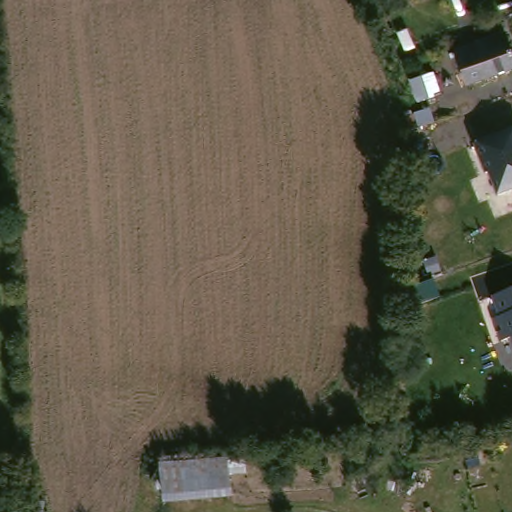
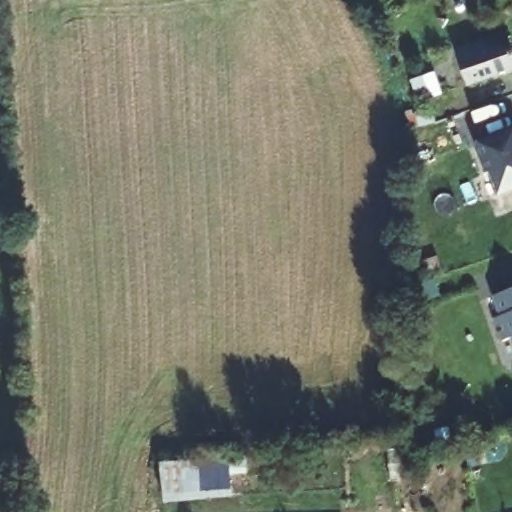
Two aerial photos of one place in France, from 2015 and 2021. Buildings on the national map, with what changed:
unchanged [(467,85),(456,46),(473,41),(505,33),(510,53),(512,60),(512,73),(483,80),(467,85)]
unchanged [(512,189),(500,191),(495,167),(491,167),(485,137),(512,131),(512,189)]
unchanged [(512,333),(506,334),(501,311),(508,309),(503,289),(512,287),(512,333)]
unchanged [(231,501),(160,504),(156,470),(225,465),(231,501)]

